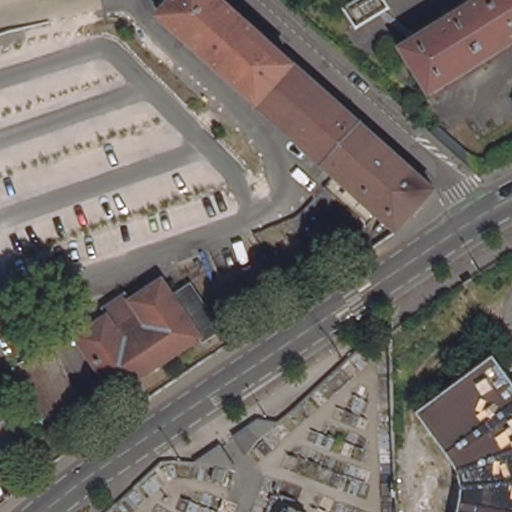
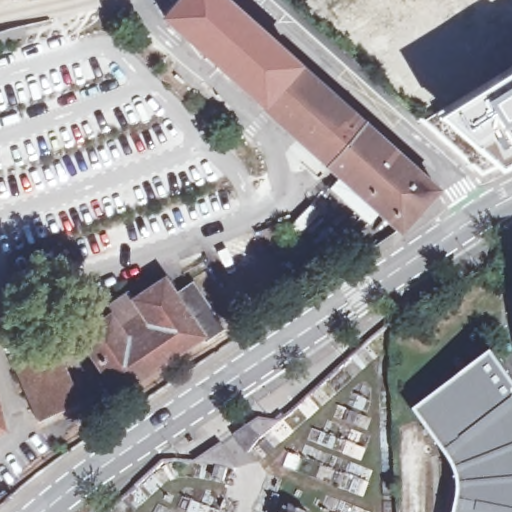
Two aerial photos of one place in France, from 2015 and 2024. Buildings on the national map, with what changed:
unchanged [(403,227),(263,102),(265,99),(167,12),(177,0),(236,0),(441,186),(403,227)]
demolished [(407,41),(475,0),(512,0),(512,42),(437,89),(407,41)]
new [(512,61),(512,159),(494,169),(457,133),(433,114),(444,105),(512,61)]
unchanged [(440,125),(491,172),(481,177),(442,142),(433,133),(440,125)]
unchanged [(210,338),(206,333),(121,390),(82,332),(113,312),(108,304),(132,287),(137,295),(167,275),(179,290),(196,279),(211,300),(226,320),(229,325),(210,338)]
unchanged [(55,348),(78,394),(34,415),(12,366),(55,348)]
unchanged [(468,487),(467,479),(464,467),(460,458),(424,408),(501,351),(512,366),(512,512),(465,512),(468,498),(468,487)]
unchanged [(4,423),(0,424),(0,404),(4,423)]
unchanged [(264,413),(285,416),(253,446),(241,430),(264,413)]
unchanged [(199,457),(220,442),(237,464),(199,457)]
unchanged [(314,512),(287,512),(292,501),(314,512)]

